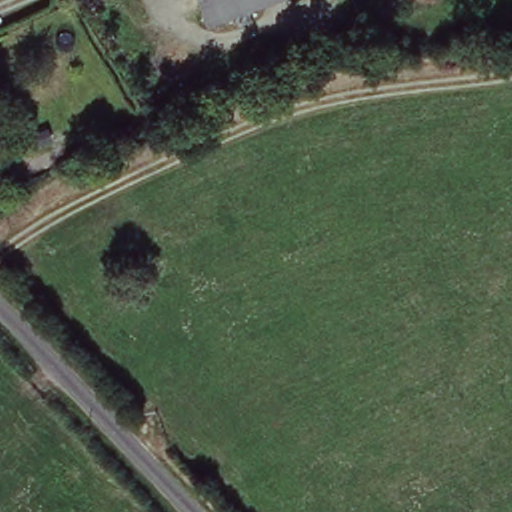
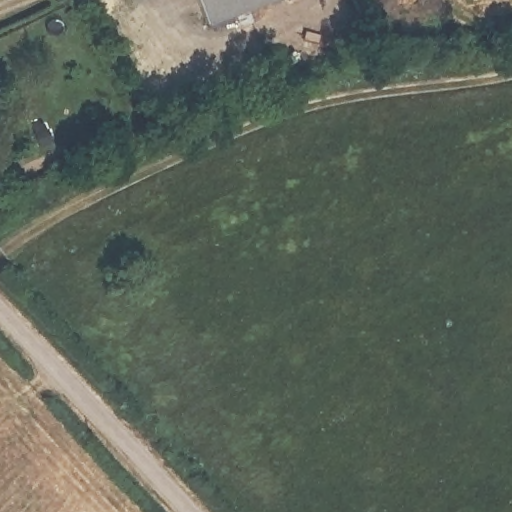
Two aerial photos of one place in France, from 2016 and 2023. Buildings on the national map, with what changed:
unchanged [(213,28),(200,0),(284,0),(213,28)]

